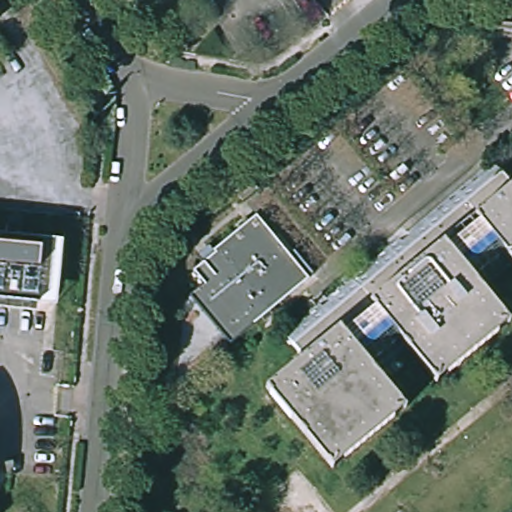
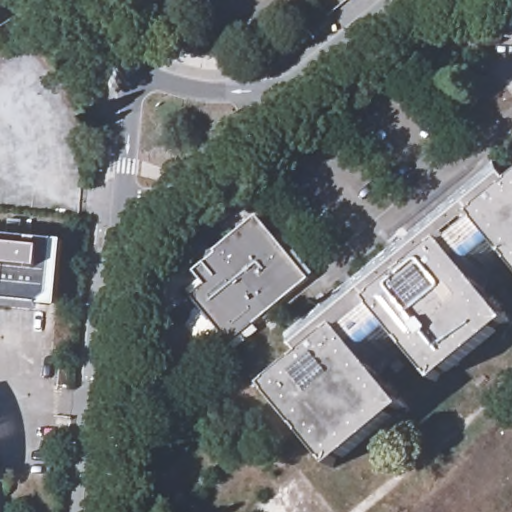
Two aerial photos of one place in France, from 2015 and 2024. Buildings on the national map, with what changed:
unchanged [(482,291),(504,318),(432,378),(410,351),(379,376),(401,403),(327,463),(265,390),(302,360),(283,335),(491,163),(511,187),(512,187),(512,266),(482,291)]
unchanged [(250,180),(258,189),(242,201),(235,193),(245,184),(250,180)]
unchanged [(313,276),(234,341),(195,294),(208,282),(197,270),(220,251),(217,249),(261,213),(313,276)]
unchanged [(48,295),(38,303),(0,299),(0,235),(55,240),(48,295)]

